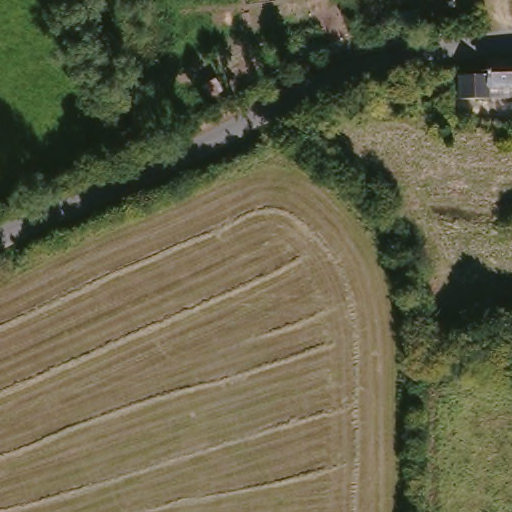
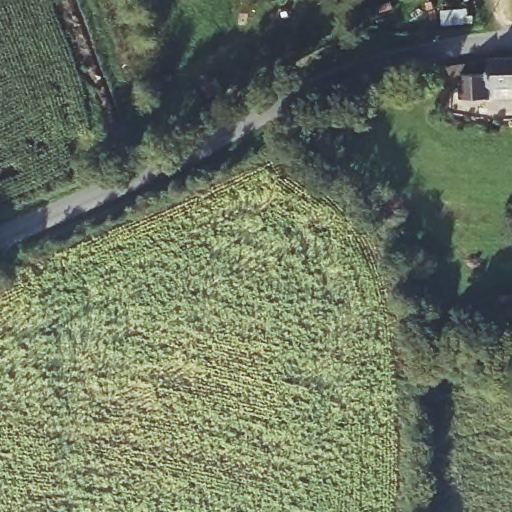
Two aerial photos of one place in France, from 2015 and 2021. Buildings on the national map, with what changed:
unchanged [(473,77),(473,66),(512,64),(512,90),(477,91),(479,101),(454,103),(451,79),(473,77)]

